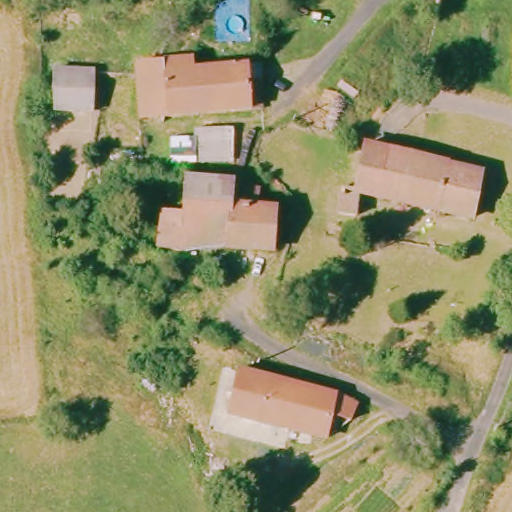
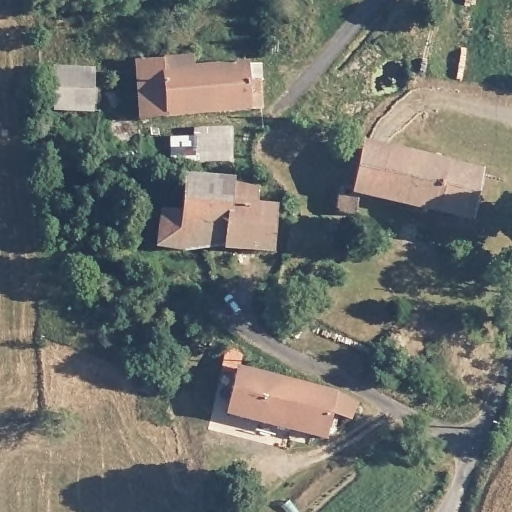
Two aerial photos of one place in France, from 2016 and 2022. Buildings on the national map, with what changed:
unchanged [(97,70),(99,111),(60,111),(56,72),(97,70)]
unchanged [(238,71),(240,79),(243,79),(244,110),(148,117),(147,76),(238,71)]
unchanged [(475,227),(370,204),(360,225),(340,224),(343,201),(351,196),(365,155),(487,186),(475,227)]
unchanged [(165,245),(166,216),(187,217),(190,177),(256,184),(255,210),(280,211),(278,250),(273,250),(165,245)]
unchanged [(284,291),(280,306),(261,301),(266,285),(284,291)]
unchanged [(343,410),(322,408),(316,434),(229,415),(238,380),(346,395),(343,410)]

